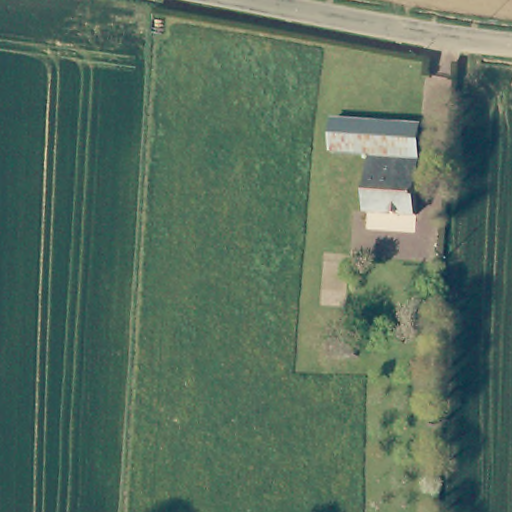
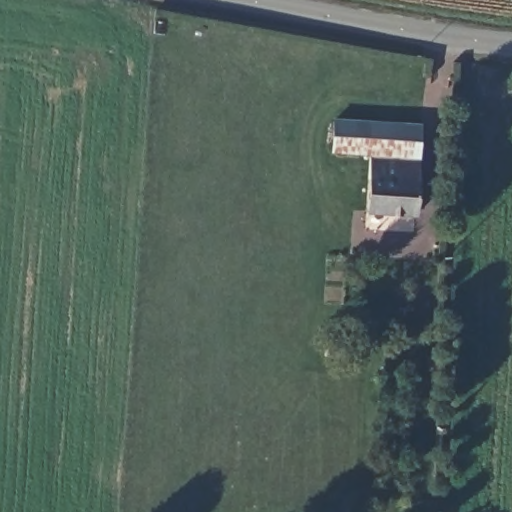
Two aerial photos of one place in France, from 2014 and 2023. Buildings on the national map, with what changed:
unchanged [(438,125),(437,156),(421,156),(372,153),(332,150),(335,119),(438,125)]
unchanged [(369,231),(370,213),(372,153),(421,156),(418,214),(417,233),(369,231)]

